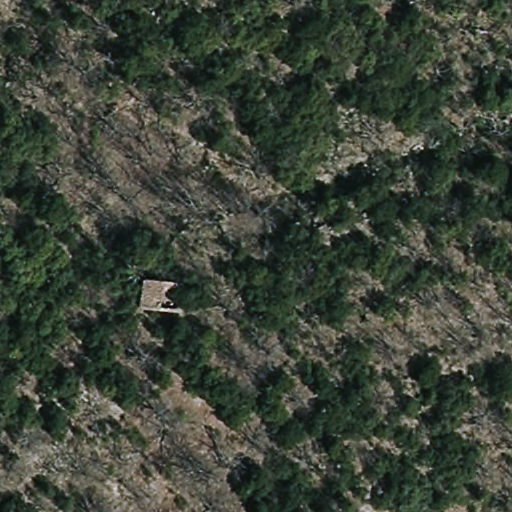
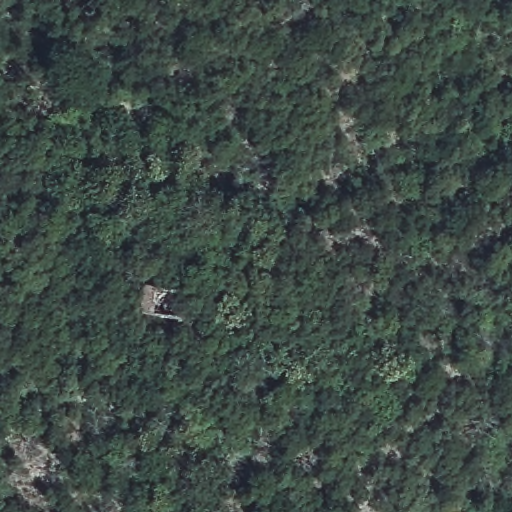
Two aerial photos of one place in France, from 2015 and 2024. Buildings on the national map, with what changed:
unchanged [(188,286),(186,313),(141,310),(143,281),(188,286)]

